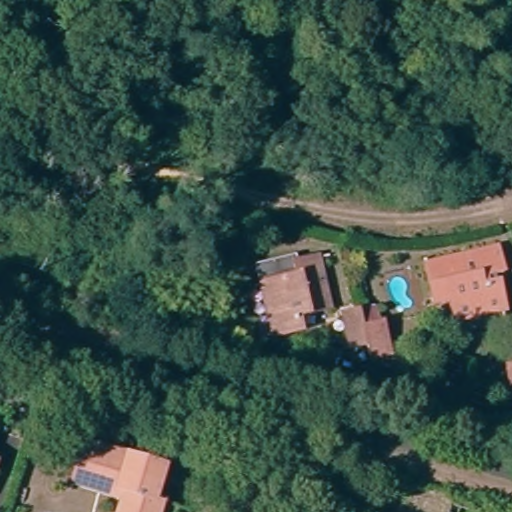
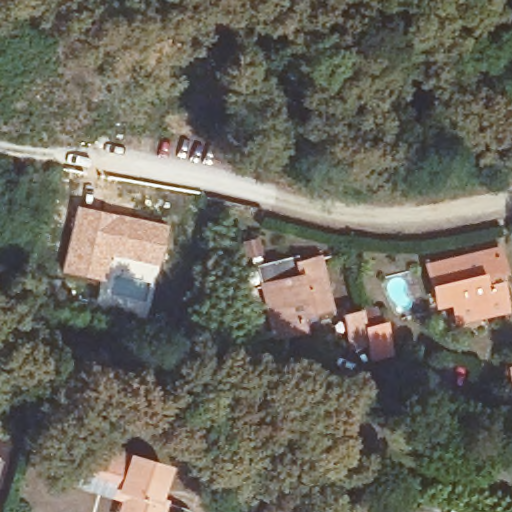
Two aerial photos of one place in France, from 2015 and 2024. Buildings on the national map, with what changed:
new [(75,204),(166,224),(157,265),(107,254),(100,282),(60,272),(75,204)]
unchanged [(507,267),(499,268),(507,304),(457,317),(452,296),(436,299),(426,261),(501,243),(507,267)]
unchanged [(292,302),(285,289),(277,273),(300,269),(297,257),(302,255),(320,253),(330,300),(298,309),(292,302)]
unchanged [(298,323),(275,325),(265,276),(277,273),(285,289),(292,302),(298,309),(301,314),(298,323)]
unchanged [(347,340),(341,308),(360,305),(363,321),(381,317),(384,335),(387,349),(370,353),(367,337),(347,340)]
unchanged [(121,508),(126,493),(73,476),(83,442),(164,467),(154,497),(164,500),(160,512),(119,512),(121,508)]

